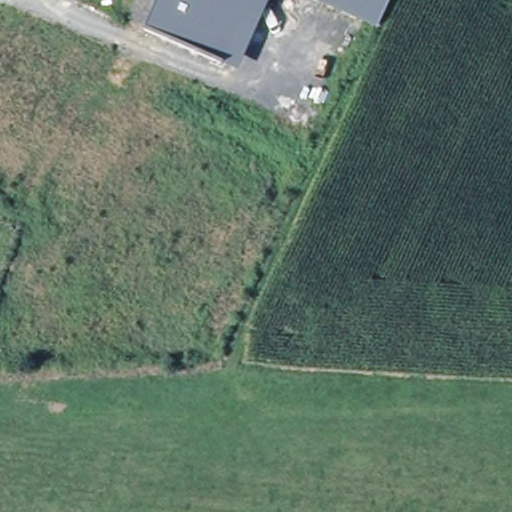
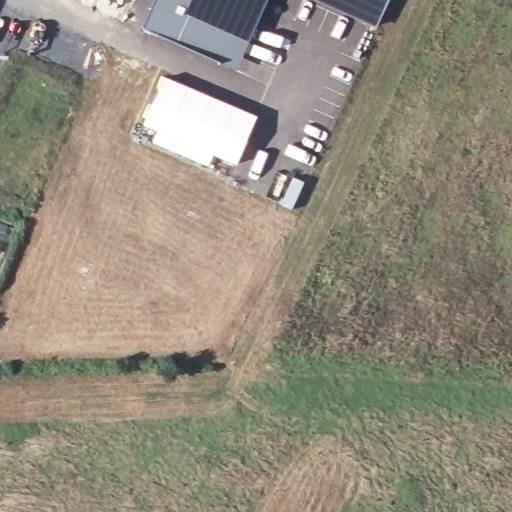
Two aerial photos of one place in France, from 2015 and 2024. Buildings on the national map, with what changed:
unchanged [(145,31),(158,0),(270,0),(238,73),(145,31)]
unchanged [(311,0),(392,0),(379,31),(311,0)]
new [(163,76),(258,116),(237,166),(214,156),(209,168),(151,143),(156,132),(143,126),(163,76)]

